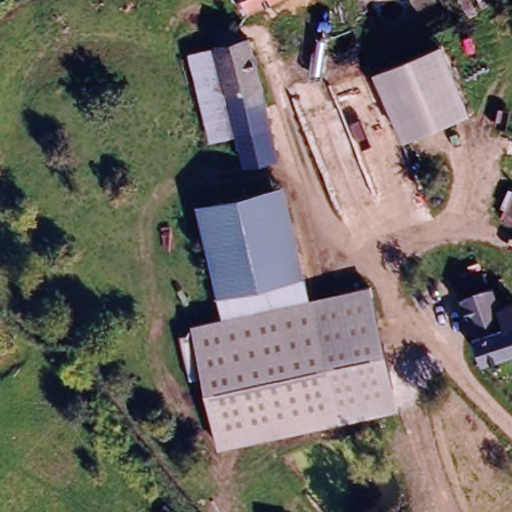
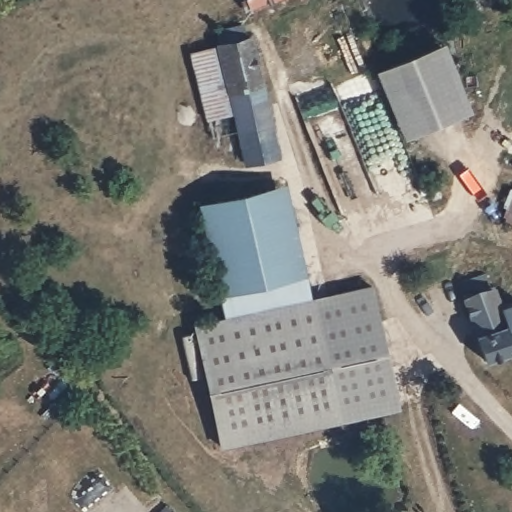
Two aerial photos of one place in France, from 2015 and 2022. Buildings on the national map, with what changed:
unchanged [(251,4),(249,0),(258,0),(251,4)]
unchanged [(251,36),(274,125),(250,132),(228,43),(251,36)]
unchanged [(474,112),(407,140),(377,70),(446,41),(474,112)]
unchanged [(250,132),(212,142),(188,54),(228,43),(250,132)]
unchanged [(287,186),(311,295),(224,313),(201,205),(287,186)]
unchanged [(505,219),(512,202),(512,222),(505,219)]
unchanged [(482,279),(487,291),(465,300),(460,287),(482,279)]
unchanged [(401,408),(340,421),(315,298),(373,285),(401,408)]
unchanged [(217,450),(189,320),(314,295),(340,422),(217,450)]
unchanged [(488,366),(477,338),(466,312),(498,298),(502,309),(512,305),(512,355),(488,366)]
unchanged [(179,512),(167,512),(172,506),(179,512)]

